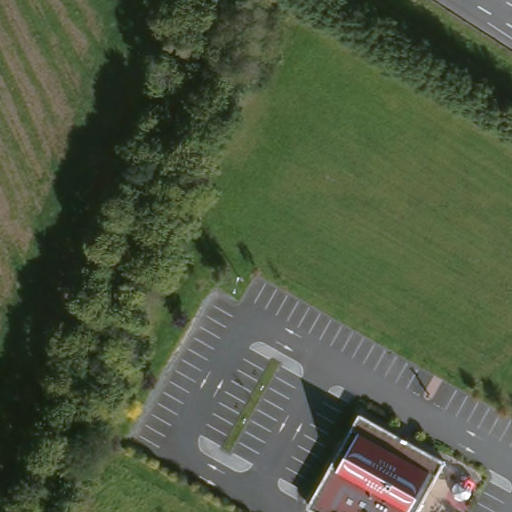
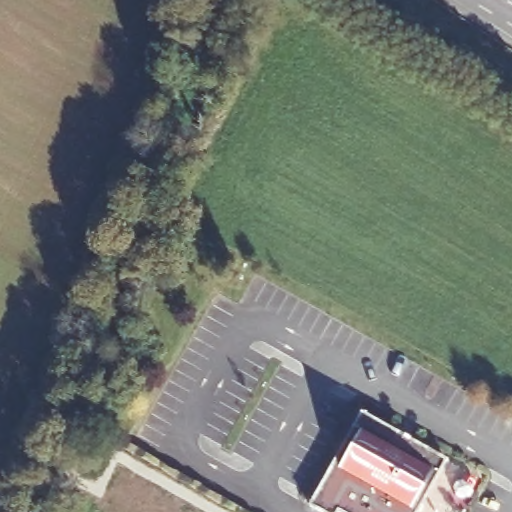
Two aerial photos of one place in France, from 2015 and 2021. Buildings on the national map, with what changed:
unchanged [(445,461),(417,512),(321,512),(310,506),(361,414),(445,461)]

